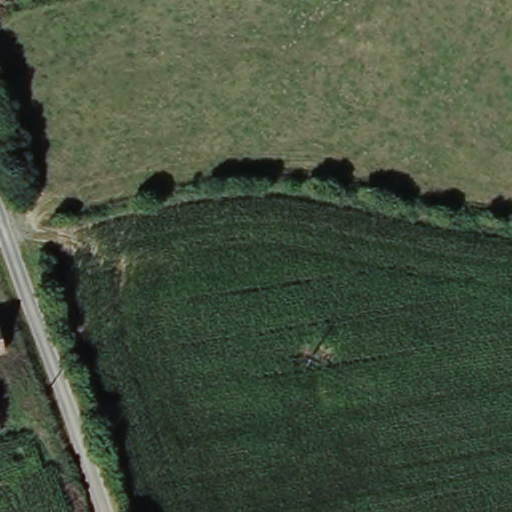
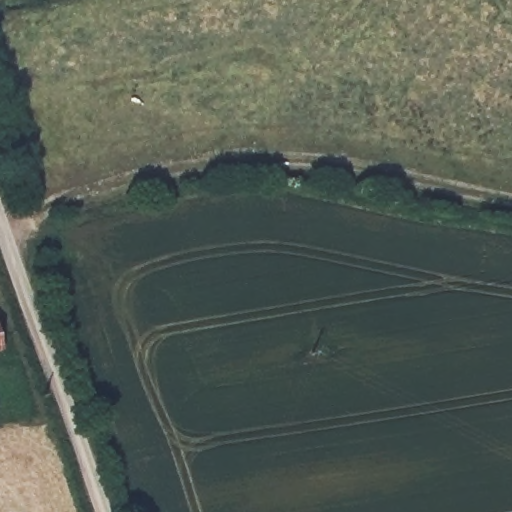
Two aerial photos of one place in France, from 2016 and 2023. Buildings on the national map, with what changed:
unchanged [(0,354),(0,339),(4,353),(0,354)]

